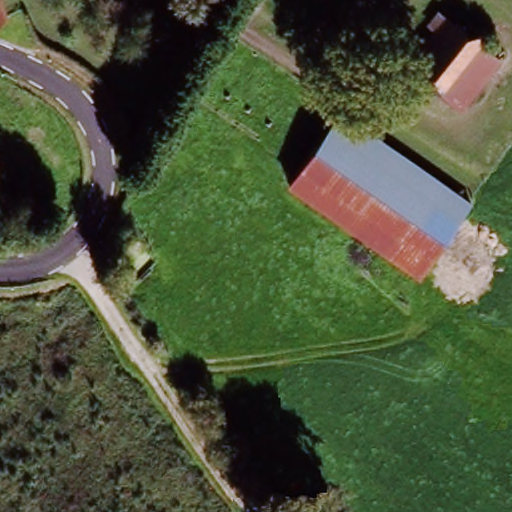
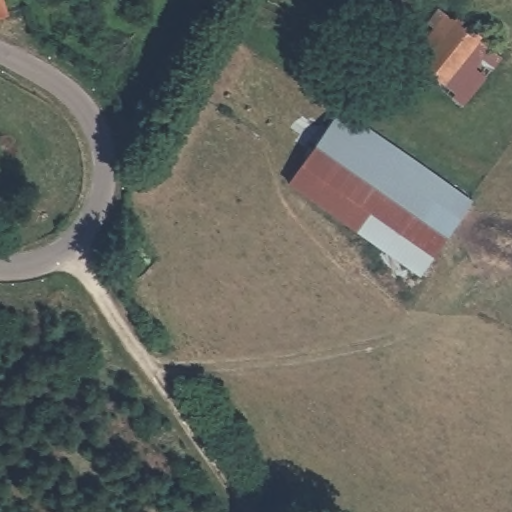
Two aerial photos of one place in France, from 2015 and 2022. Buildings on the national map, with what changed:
unchanged [(0,25),(0,0),(4,0),(12,20),(0,25)]
unchanged [(445,105),(410,76),(417,69),(406,59),(448,16),(491,54),(445,105)]
unchanged [(334,120),(420,176),(466,205),(420,279),(287,195),(334,120)]

